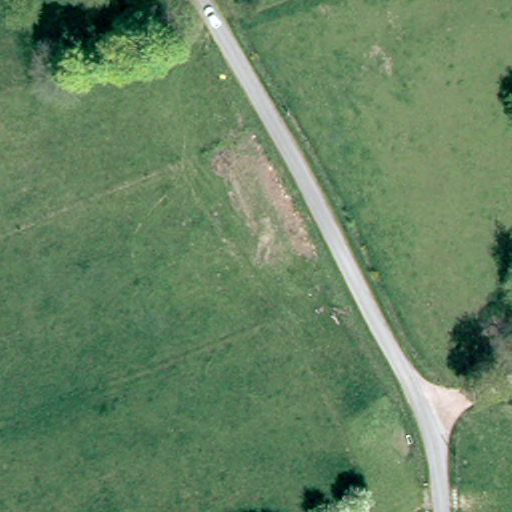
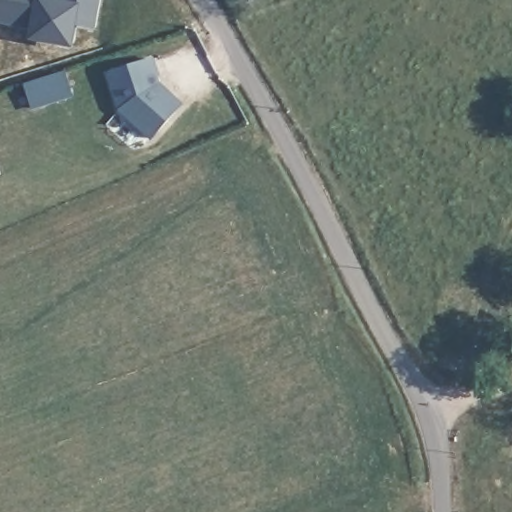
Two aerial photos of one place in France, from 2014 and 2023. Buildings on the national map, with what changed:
new [(95,30),(75,26),(73,47),(29,40),(30,30),(0,24),(0,0),(100,0),(95,30)]
new [(160,82),(183,103),(151,141),(118,110),(105,73),(154,59),(160,82)]
new [(64,71),(74,97),(32,112),(23,84),(64,71)]

